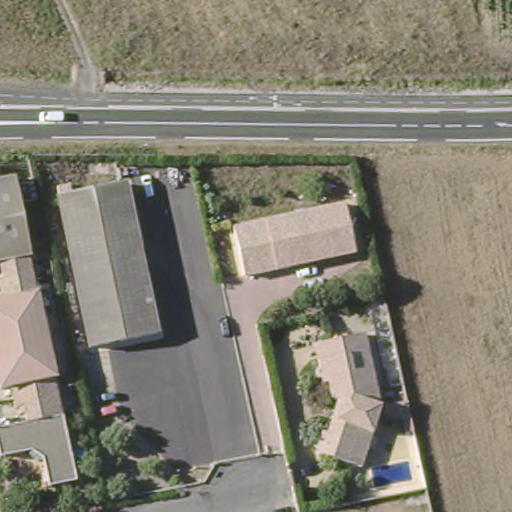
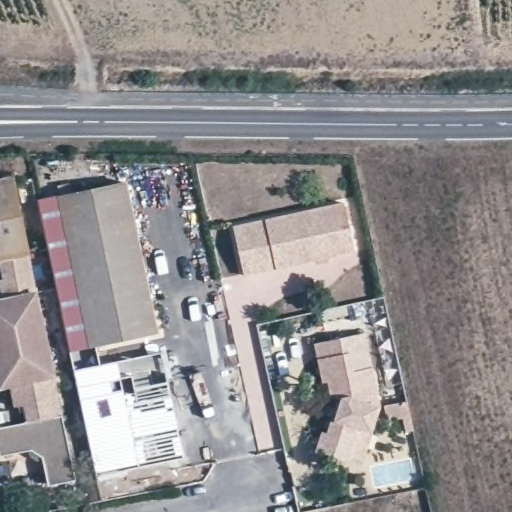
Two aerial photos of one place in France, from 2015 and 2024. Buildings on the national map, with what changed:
unchanged [(3,257),(0,258),(0,181),(17,177),(30,251),(3,257)]
unchanged [(87,341),(81,306),(61,197),(127,185),(157,329),(87,341)]
new [(96,475),(70,352),(37,200),(61,197),(81,306),(87,341),(95,340),(100,363),(161,350),(183,456),(96,475)]
unchanged [(246,223),(343,203),(351,241),(255,262),(246,223)]
unchanged [(255,262),(351,241),(353,254),(257,276),(255,262)]
unchanged [(31,421),(18,404),(14,382),(3,384),(0,370),(0,298),(8,296),(7,276),(3,257),(30,251),(64,415),(31,421)]
unchanged [(335,458),(305,438),(316,420),(323,425),(335,408),(330,382),(321,384),(315,348),(365,339),(381,410),(361,438),(345,464),(335,458)]
unchanged [(0,427),(31,421),(64,415),(77,482),(53,485),(48,459),(35,460),(31,450),(3,454),(0,438),(0,427)]

